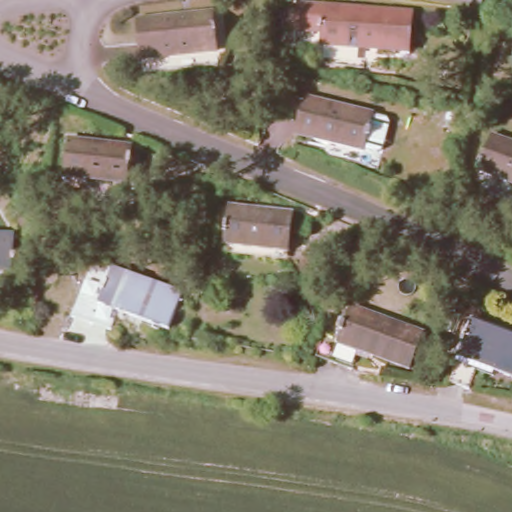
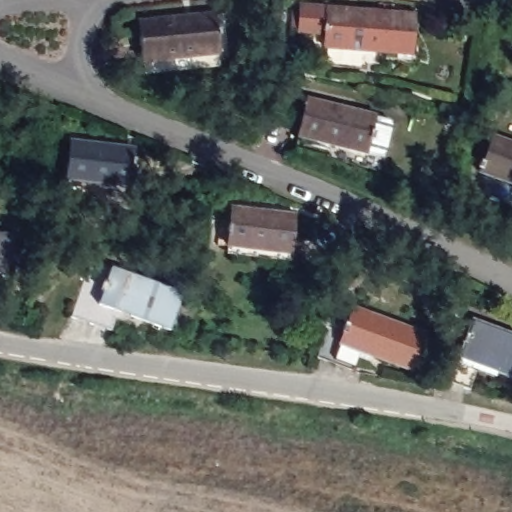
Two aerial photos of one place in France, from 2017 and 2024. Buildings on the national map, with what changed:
unchanged [(324,2),(412,6),(411,47),(322,43),(324,2)]
unchanged [(137,21),(213,14),(216,54),(141,61),(137,21)]
unchanged [(309,99),(375,108),(369,145),(303,135),(309,99)]
unchanged [(487,139),(507,147),(511,139),(512,139),(512,191),(473,176),(487,139)]
unchanged [(63,141),(127,148),(122,187),(59,180),(63,141)]
unchanged [(221,203),(285,210),(280,248),(217,241),(221,203)]
unchanged [(5,284),(0,284),(0,243),(7,244),(5,284)]
unchanged [(89,318),(110,262),(182,289),(168,326),(116,306),(110,324),(109,325),(100,322),(89,318)]
unchanged [(314,347),(324,320),(338,325),(348,298),(420,324),(406,361),(357,343),(351,360),(314,347)]
unchanged [(471,320),(512,335),(512,379),(475,366),(466,389),(448,383),(471,320)]

